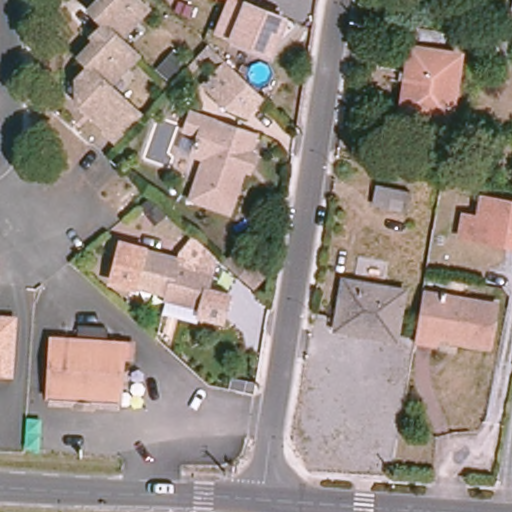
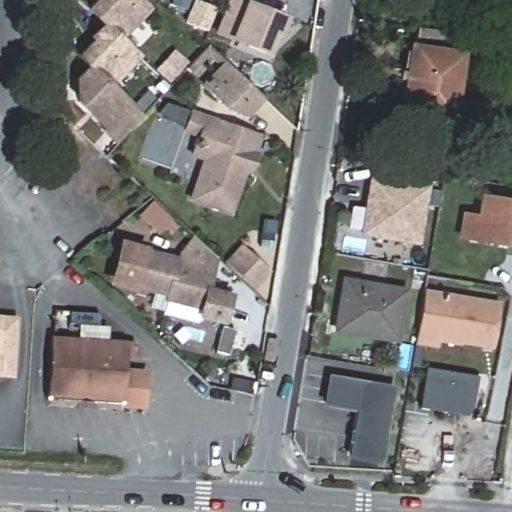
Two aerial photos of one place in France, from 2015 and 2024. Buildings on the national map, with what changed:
unchanged [(116,39),(100,24),(99,25),(84,10),(94,0),(136,0),(145,9),(116,39)]
unchanged [(271,54),(219,32),(232,0),(240,0),(285,18),(271,54)]
unchanged [(116,39),(134,57),(106,86),(84,66),(75,57),(90,40),(88,37),(99,25),(100,24),(116,39)]
unchanged [(460,56),(451,118),(403,112),(412,49),(415,49),(418,27),(443,31),(448,32),(445,54),(460,56)]
unchanged [(493,39),(510,41),(506,67),(471,62),(475,36),(493,39)]
unchanged [(264,99),(248,116),(205,85),(227,63),(264,99)]
unchanged [(106,86),(138,116),(118,138),(103,125),(105,123),(77,97),(73,77),(84,66),(106,86)]
unchanged [(256,136),(230,212),(193,199),(207,158),(194,154),(206,119),(256,136)]
new [(372,177),(426,187),(417,242),(362,233),(372,177)]
demolished [(411,192),(407,211),(373,204),(377,185),(411,192)]
unchanged [(512,245),(457,237),(461,211),(476,214),(480,192),(512,199),(512,245)]
unchanged [(179,256),(193,237),(215,258),(213,271),(209,287),(230,293),(223,326),(194,320),(197,308),(160,300),(161,295),(135,286),(134,290),(106,282),(118,237),(179,256)]
unchanged [(404,292),(396,338),(375,335),(376,329),(340,322),(347,282),(404,292)]
unchanged [(497,306),(490,345),(436,336),(434,345),(416,341),(424,293),(497,306)]
unchanged [(16,317),(14,377),(0,377),(0,315),(16,317)]
unchanged [(106,327),(105,342),(122,343),(121,370),(147,370),(144,410),(118,408),(48,404),(51,339),(80,341),(81,326),(106,327)]
new [(477,376),(471,407),(467,415),(420,408),(426,367),(477,376)]
new [(347,457),(354,411),(323,406),(329,374),(395,386),(382,462),(347,457)]

